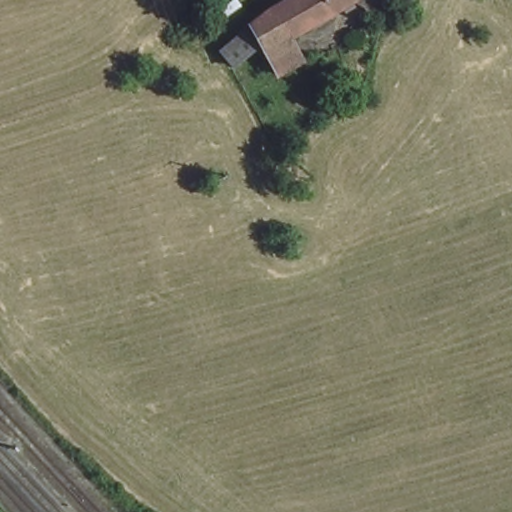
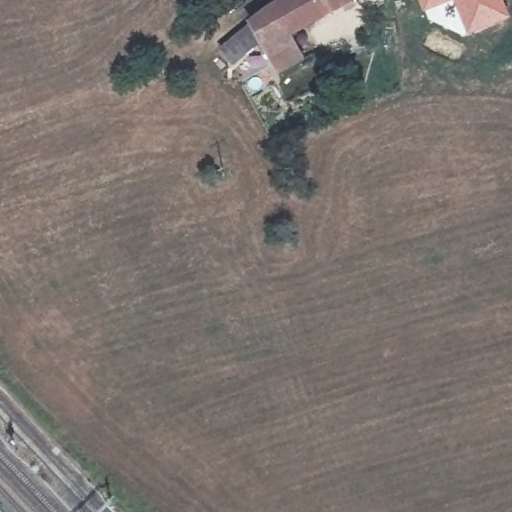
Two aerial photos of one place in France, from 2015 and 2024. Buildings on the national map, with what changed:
unchanged [(317,61),(274,82),(262,58),(259,52),(235,72),(220,51),(246,28),(262,15),(291,0),(347,0),(351,7),(283,46),(292,61),(312,51),(317,61)]
new [(466,40),(451,4),(422,15),(416,0),(504,0),(512,20),(466,40)]

